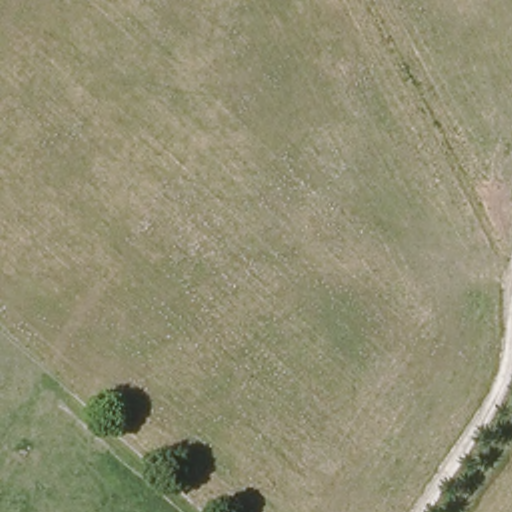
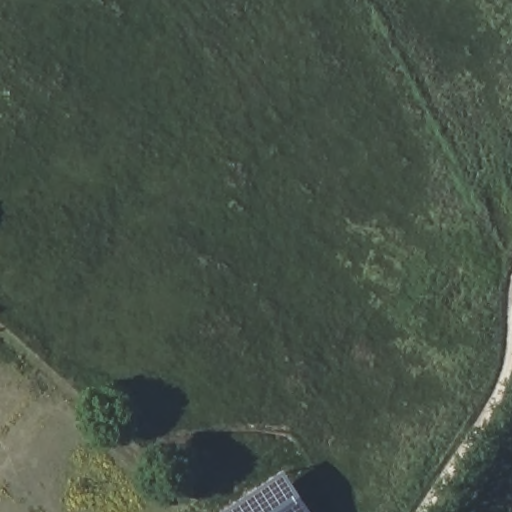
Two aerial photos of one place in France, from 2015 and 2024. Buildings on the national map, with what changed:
new [(316,512),(223,512),(286,469),(316,512)]

